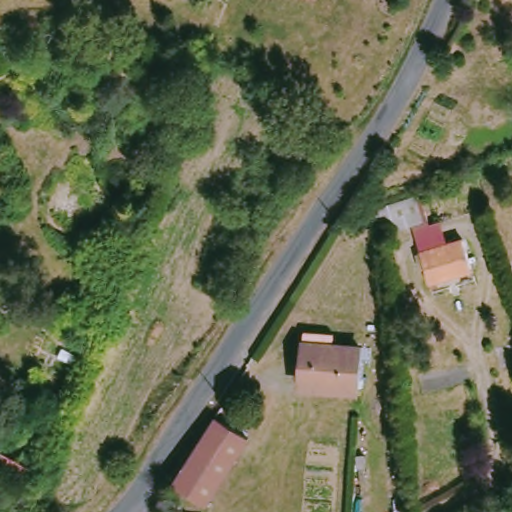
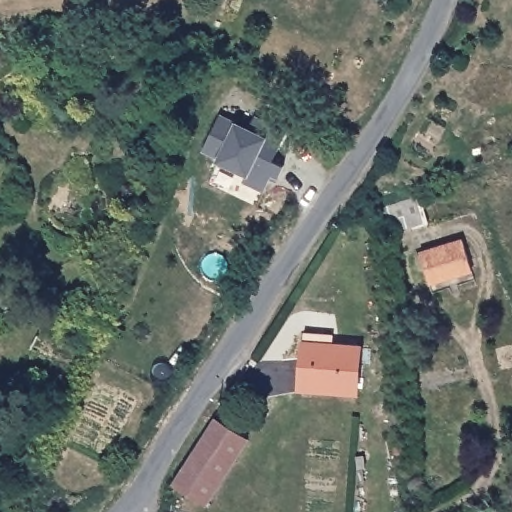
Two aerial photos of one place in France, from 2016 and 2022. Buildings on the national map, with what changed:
new [(203,153),(221,114),(235,121),(250,129),(256,118),(286,133),(273,161),(285,166),(276,184),(269,182),(264,190),(244,180),(248,174),(217,160),(203,153)]
unchanged [(429,224),(413,229),(412,227),(396,232),(395,229),(382,234),(374,213),(420,197),(429,224)]
unchanged [(421,253),(463,240),(472,270),(429,283),(421,253)]
unchanged [(304,332),(334,334),(333,346),(360,348),(371,348),(369,363),(359,363),(356,389),(300,384),(303,343),(304,332)]
unchanged [(248,439),(207,504),(173,483),(214,418),(248,439)]

